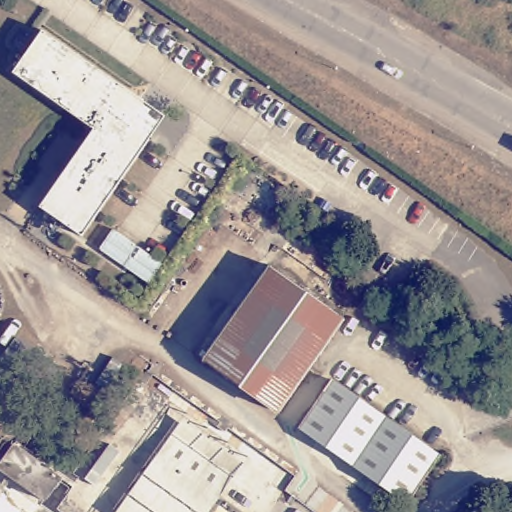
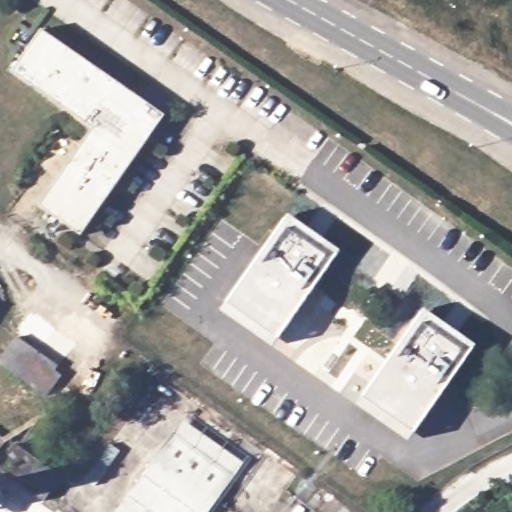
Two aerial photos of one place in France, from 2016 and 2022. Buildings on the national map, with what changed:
unchanged [(145,99),(169,116),(152,141),(85,237),(42,207),(98,130),(16,73),(45,30),(145,99)]
new [(288,213),(340,249),(272,347),(221,311),(288,213)]
demolished [(269,266),(344,319),(277,413),(203,360),(269,266)]
new [(424,308),(475,344),(407,440),(356,406),(424,308)]
demolished [(364,334),(414,369),(393,400),(343,364),(364,334)]
demolished [(331,380),(439,456),(407,503),(298,427),(331,380)]
unchanged [(184,416),(242,458),(204,512),(114,512),(184,416)]
unchanged [(8,438),(57,473),(40,496),(0,467),(0,450),(8,438)]

